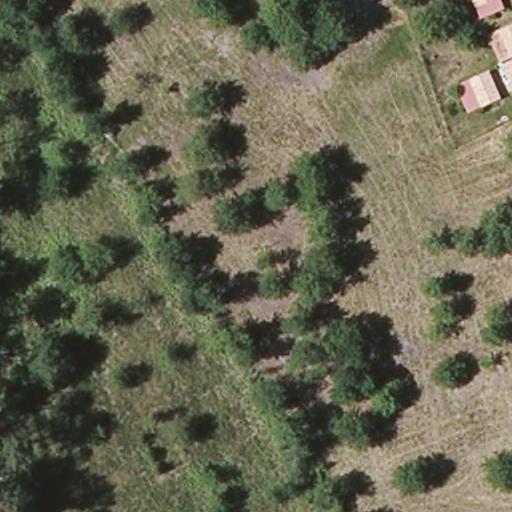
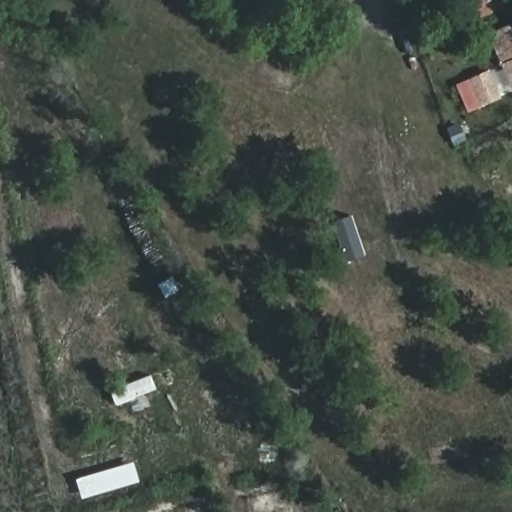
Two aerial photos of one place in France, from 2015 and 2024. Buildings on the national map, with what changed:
unchanged [(480,21),(472,0),(501,0),(505,11),(480,21)]
unchanged [(486,34),(512,23),(512,91),(486,34)]
unchanged [(468,114),(455,85),(490,71),(502,99),(468,114)]

